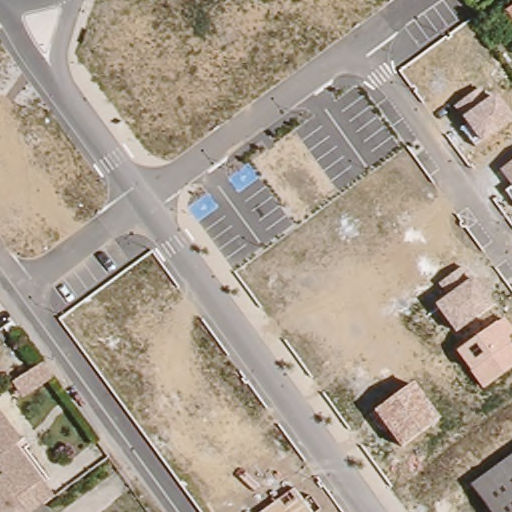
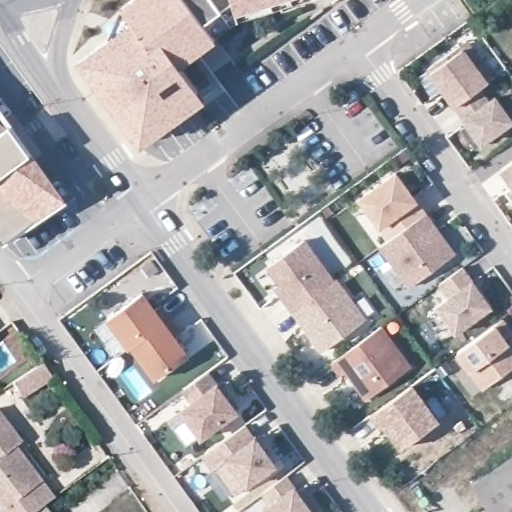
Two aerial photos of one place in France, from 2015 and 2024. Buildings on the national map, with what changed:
new [(204,21),(206,19),(216,34),(216,40),(181,66),(206,100),(138,146),(75,59),(110,36),(120,7),(130,0),(190,0),(204,21)]
new [(238,17),(216,34),(206,19),(204,21),(190,0),(296,0),(238,17)]
unchanged [(512,7),(512,33),(499,17),(512,7)]
new [(497,76),(489,81),(480,89),(454,109),(431,73),(428,67),(468,39),(497,76)]
unchanged [(491,100),(496,95),(512,116),(512,122),(481,145),(454,109),(480,89),(491,100)]
new [(6,237),(0,228),(0,112),(61,197),(6,237)]
unchanged [(502,172),(512,164),(512,186),(502,172)]
new [(414,197),(416,197),(458,253),(411,288),(379,247),(388,240),(381,227),(379,228),(358,199),(396,171),(414,197)]
unchanged [(506,193),(512,188),(512,201),(506,193)]
new [(334,278),(337,275),(367,317),(321,351),(275,288),(279,286),(268,268),(306,240),(334,278)]
unchanged [(494,307),(454,336),(432,307),(446,297),(438,287),(466,267),(494,307)]
new [(156,306),(163,303),(183,328),(174,331),(189,353),(156,378),(138,352),(135,354),(108,318),(144,289),(156,306)]
unchanged [(512,325),(512,338),(510,340),(512,342),(512,371),(483,393),(457,355),(507,318),(512,325)]
new [(412,366),(365,400),(345,373),(342,375),(333,362),(382,325),(412,366)]
unchanged [(44,382),(15,402),(5,388),(34,368),(44,382)]
new [(218,380),(239,410),(201,439),(179,408),(193,398),(182,389),(209,370),(218,380)]
unchanged [(444,420),(403,453),(373,414),(415,383),(444,420)]
unchanged [(20,456),(28,467),(20,472),(31,490),(40,485),(45,493),(52,503),(48,506),(38,512),(0,512),(0,510),(3,509),(0,505),(0,414),(5,411),(25,444),(17,449),(16,450),(8,454),(13,461),(20,456)]
new [(256,435),(278,466),(247,488),(244,484),(236,494),(216,468),(212,471),(201,455),(246,424),(256,435)]
unchanged [(512,457),(512,512),(483,512),(467,489),(512,457)]
unchanged [(260,512),(294,488),(313,512),(260,512)]
unchanged [(52,512),(38,512),(48,506),(52,512)]

